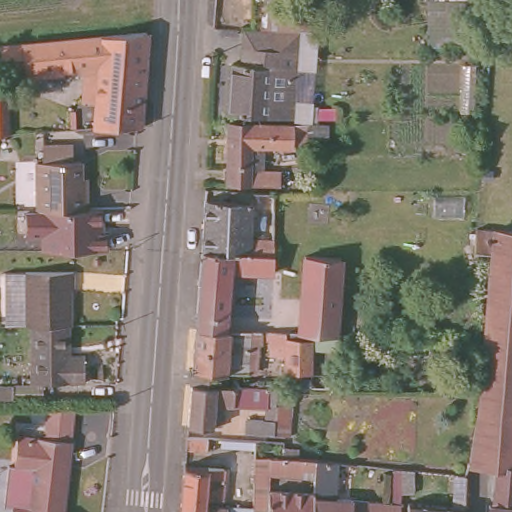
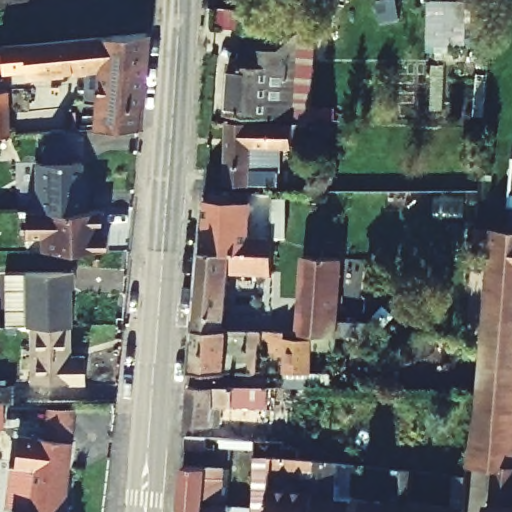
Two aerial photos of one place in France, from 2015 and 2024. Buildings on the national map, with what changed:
unchanged [(460,0),(459,51),(426,51),(427,0),(460,0)]
unchanged [(99,113),(102,74),(39,80),(38,74),(0,78),(0,49),(7,48),(149,35),(143,111),(99,113)]
unchanged [(289,37),(287,88),(306,90),(304,106),(246,101),(249,51),(268,52),(269,36),(289,37)]
unchanged [(0,137),(0,98),(7,98),(9,137),(0,137)]
unchanged [(306,111),(305,137),(280,136),(278,160),(294,160),(294,174),(242,172),(245,109),(306,111)]
unchanged [(43,238),(26,238),(25,211),(37,212),(36,160),(44,160),(43,143),(74,143),(74,160),(88,159),(90,208),(104,208),(104,235),(109,235),(109,251),(43,251),(43,238)]
unchanged [(221,190),(266,191),(266,181),(291,182),(291,198),(268,196),(266,225),(289,226),(289,241),(218,239),(221,190)]
unchanged [(477,410),(490,249),(474,247),(474,228),(512,232),(512,413),(477,410)]
unchanged [(289,241),(288,261),(245,260),(239,315),(211,313),(218,239),(289,241)]
unchanged [(341,251),(336,327),(300,325),(304,249),(341,251)]
unchanged [(28,328),(5,328),(5,273),(26,273),(28,328)]
unchanged [(26,273),(75,273),(75,291),(70,291),(69,328),(28,328),(26,273)]
unchanged [(239,315),(262,316),(261,325),(269,326),(267,357),(208,358),(211,313),(239,315)]
unchanged [(68,355),(85,356),(85,387),(30,386),(28,328),(69,328),(68,355)]
unchanged [(311,330),(308,367),(282,366),(284,341),(274,340),(276,328),(311,330)]
unchanged [(0,400),(0,382),(8,382),(8,400),(0,400)]
unchanged [(199,390),(223,391),(271,393),(269,409),(257,408),(257,411),(216,409),(213,430),(183,428),(187,390),(199,390)]
unchanged [(512,413),(512,470),(492,470),(467,468),(477,410),(512,413)]
unchanged [(269,423),(268,439),(239,437),(241,422),(269,423)]
unchanged [(8,512),(0,511),(5,468),(11,469),(15,438),(39,441),(41,425),(68,428),(66,444),(68,444),(60,512),(8,512)]
unchanged [(203,442),(203,454),(181,454),(183,441),(203,442)]
unchanged [(299,470),(299,482),(279,480),(280,462),(311,465),(333,467),(330,502),(395,507),(395,512),(308,512),(309,498),(311,471),(299,470)]
unchanged [(419,465),(417,486),(406,485),(408,463),(419,465)]
unchanged [(202,469),(201,478),(216,478),(214,498),(202,498),(201,506),(221,507),(221,512),(175,512),(179,467),(202,469)]
unchanged [(490,506),(492,470),(512,470),(512,512),(484,512),(484,506),(490,506)]
unchanged [(448,511),(450,478),(462,480),(460,512),(433,512),(434,510),(448,511)]
unchanged [(308,512),(264,512),(266,496),(309,498),(308,512)]
unchanged [(433,512),(404,512),(404,507),(434,510),(433,512)]

